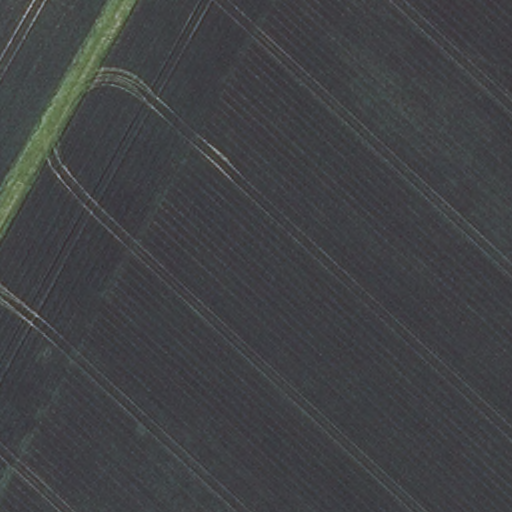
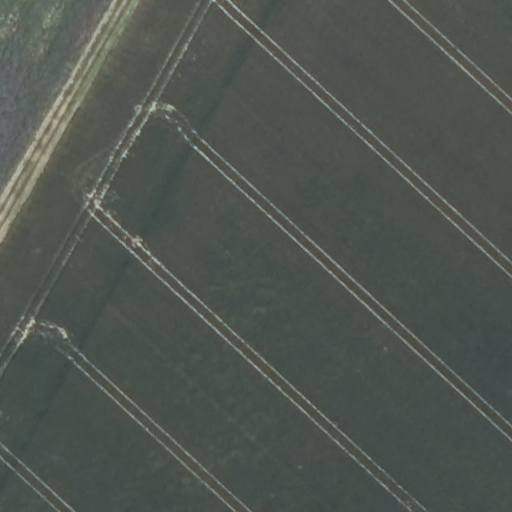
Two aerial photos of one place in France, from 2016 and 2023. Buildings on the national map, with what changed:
[]

